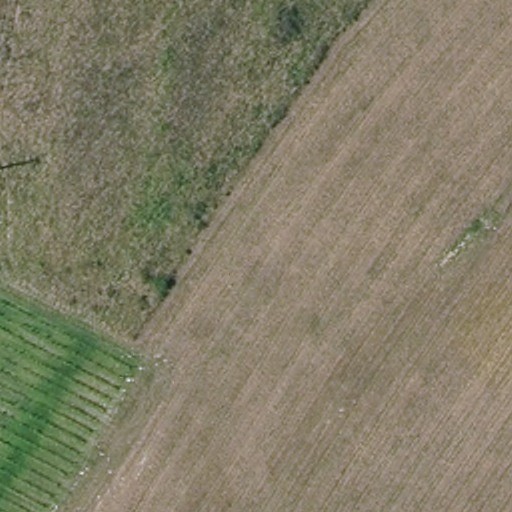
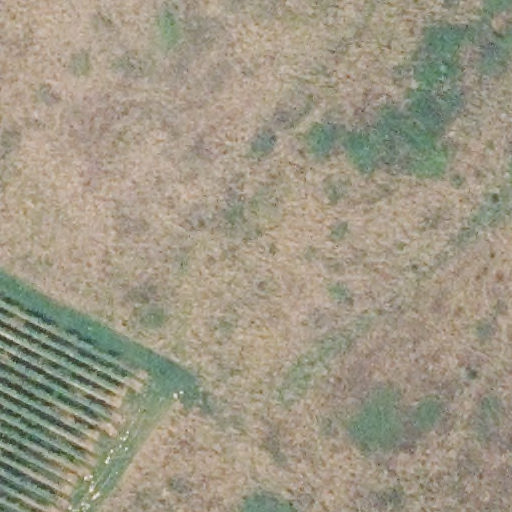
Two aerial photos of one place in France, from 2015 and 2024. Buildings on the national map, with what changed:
[]

